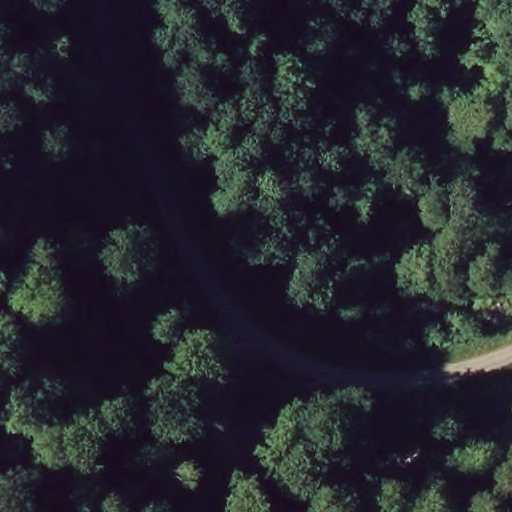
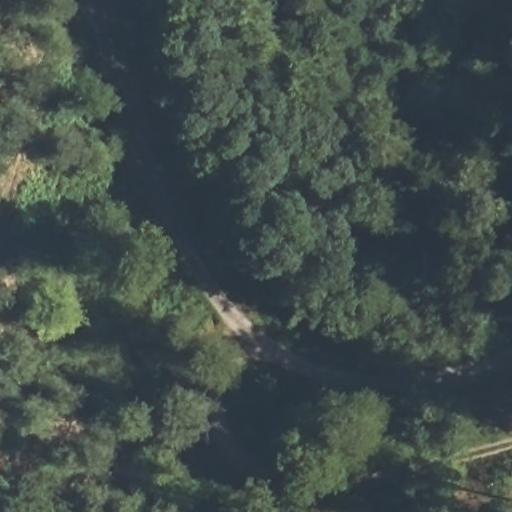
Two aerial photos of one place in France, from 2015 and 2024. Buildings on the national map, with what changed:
[]

